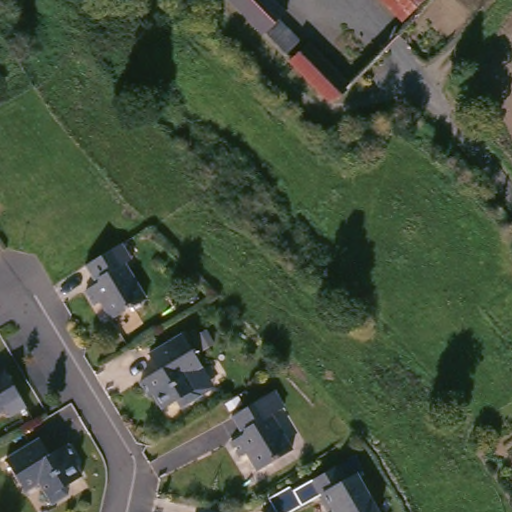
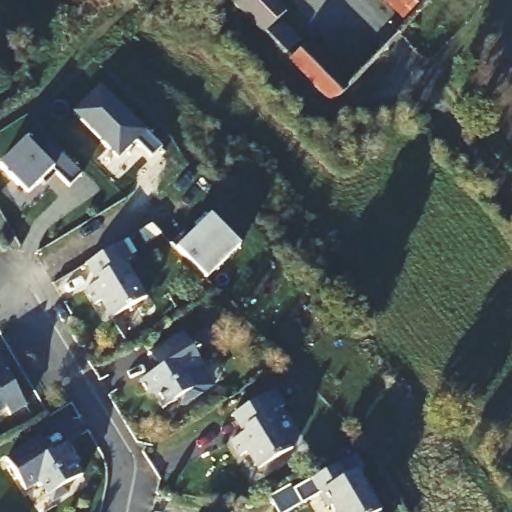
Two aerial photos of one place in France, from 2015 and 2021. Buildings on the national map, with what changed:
unchanged [(289,16),(311,39),(295,53),(279,38),(241,0),(287,0),(296,9),(289,16)]
unchanged [(428,0),(409,17),(394,0),(428,0)]
unchanged [(298,58),(319,41),(362,84),(350,97),(334,99),(298,58)]
new [(74,114),(101,88),(161,149),(152,158),(137,141),(118,160),(74,114)]
new [(38,130),(82,176),(70,189),(52,171),(27,195),(0,169),(0,168),(25,144),(38,130)]
new [(211,218),(240,249),(207,282),(176,250),(211,218)]
unchanged [(121,314),(110,297),(104,300),(94,286),(106,279),(107,274),(98,259),(130,239),(140,255),(133,259),(155,294),(121,314)]
unchanged [(214,365),(200,374),(210,391),(195,400),(188,398),(187,396),(173,404),(164,389),(159,392),(150,376),(173,362),(164,346),(192,329),(214,365)]
unchanged [(19,415),(15,409),(0,418),(0,382),(1,382),(16,374),(35,406),(19,415)]
unchanged [(257,427),(248,412),(287,389),(297,405),(284,413),(305,448),(271,468),(260,450),(253,454),(244,439),(256,432),(257,427)]
unchanged [(77,442),(86,457),(83,459),(92,474),(77,484),(78,486),(76,493),(61,502),(49,482),(35,490),(15,459),(44,441),(53,457),(77,442)]
unchanged [(393,512),(349,512),(337,493),(333,495),(324,481),(352,464),(360,478),(369,473),(393,512)]
new [(298,493),(309,512),(276,512),(273,508),(298,493)]

